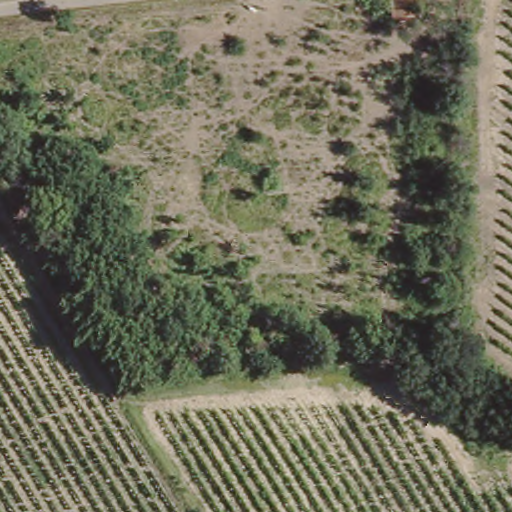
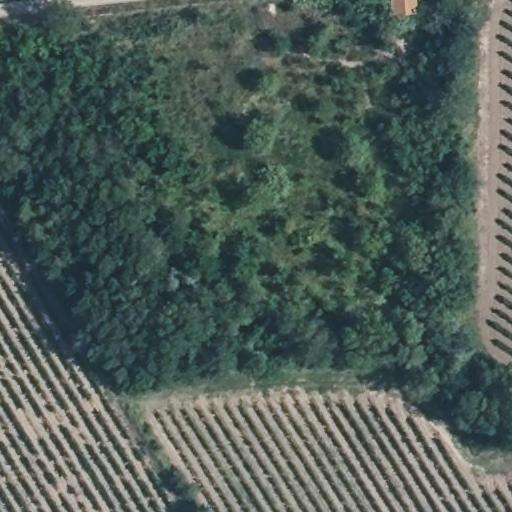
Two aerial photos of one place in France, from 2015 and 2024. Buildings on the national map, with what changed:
unchanged [(393,16),(392,0),(415,0),(417,14),(393,16)]

